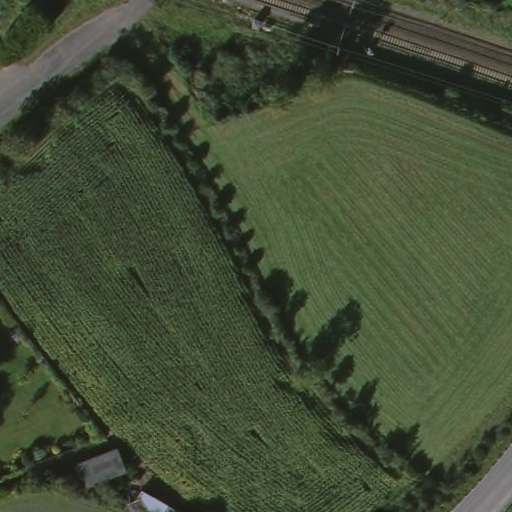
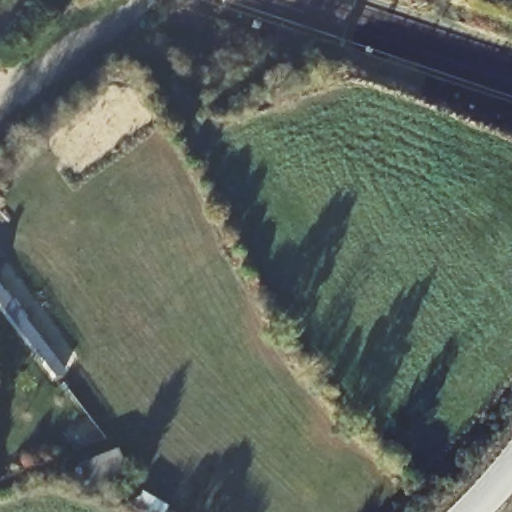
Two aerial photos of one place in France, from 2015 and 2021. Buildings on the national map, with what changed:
unchanged [(62,474),(77,467),(76,465),(116,449),(125,472),(124,472),(135,488),(114,496),(103,480),(85,486),(84,481),(76,485),(69,488),(65,480),(62,474)]
unchanged [(166,505),(162,512),(138,512),(131,508),(141,491),(166,505)]

